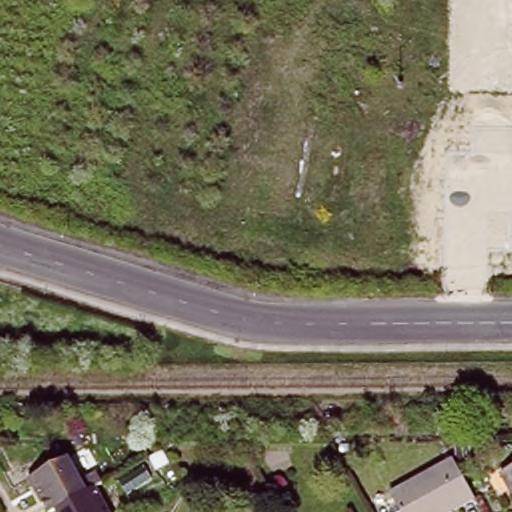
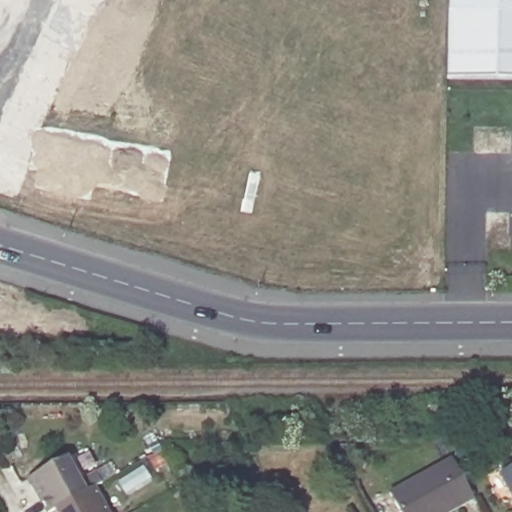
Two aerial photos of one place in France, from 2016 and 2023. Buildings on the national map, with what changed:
new [(445,78),(446,10),(447,0),(512,0),(512,79),(445,78)]
unchanged [(75,481),(91,472),(98,485),(90,489),(52,510),(49,512),(43,512),(25,478),(62,458),(75,481)]
unchanged [(472,498),(446,512),(399,512),(388,492),(450,458),(472,498)]
unchanged [(512,468),(512,505),(497,476),(512,468)]
unchanged [(102,512),(52,512),(52,510),(90,489),(102,512)]

